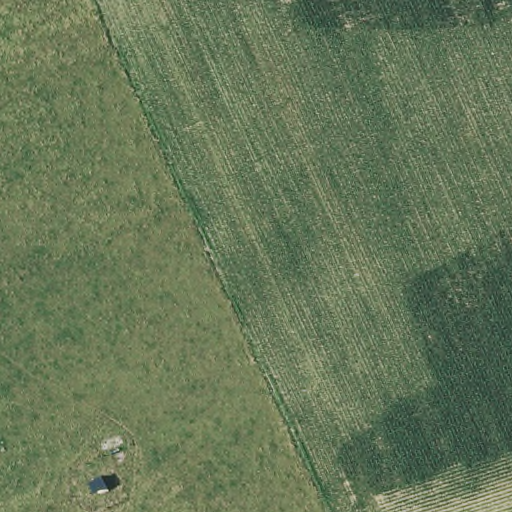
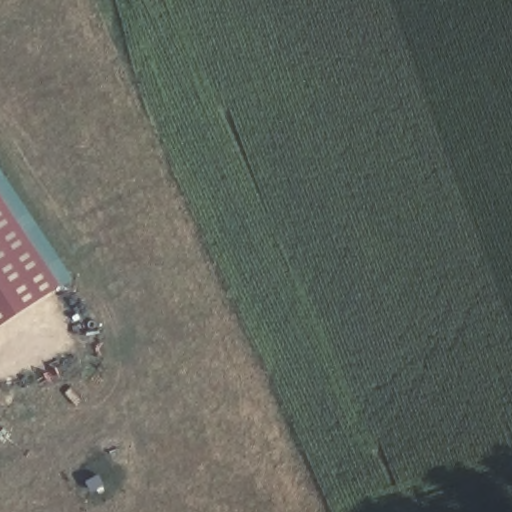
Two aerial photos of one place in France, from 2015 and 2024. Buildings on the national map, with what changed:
new [(0,325),(0,189),(62,280),(0,325)]

